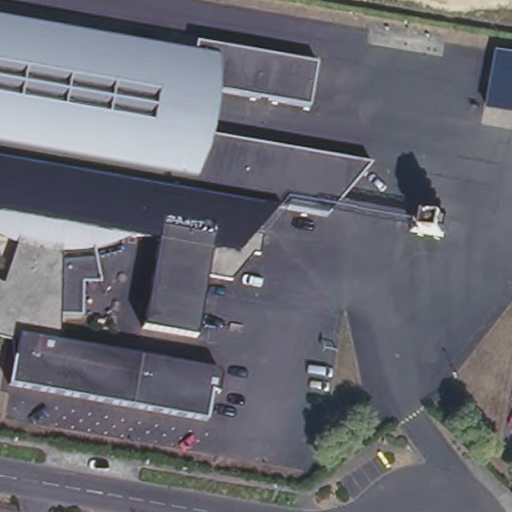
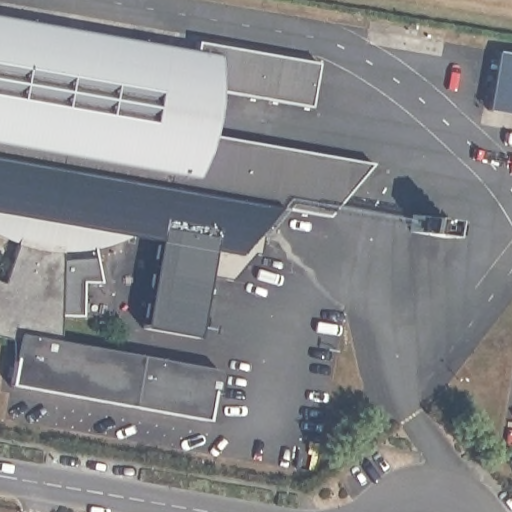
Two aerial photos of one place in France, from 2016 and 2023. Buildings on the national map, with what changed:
unchanged [(192,36),(314,58),(305,102),(201,84),(194,127),(368,158),(322,212),(272,203),(256,224),(251,223),(250,231),(259,233),(256,250),(250,249),(228,276),(202,271),(192,333),(138,323),(153,235),(129,230),(121,233),(114,236),(105,239),(94,242),(89,243),(94,278),(77,280),(82,314),(56,317),(56,336),(210,362),(211,362),(212,362),(212,363),(213,363),(214,363),(214,364),(215,365),(215,366),(216,366),(216,367),(217,367),(217,368),(217,369),(217,370),(217,371),(214,386),(207,385),(202,414),(5,380),(14,336),(1,334),(0,334),(0,274),(12,238),(0,234),(0,11),(190,45),(192,36)]
unchanged [(512,52),(512,114),(486,110),(496,49),(512,52)]

